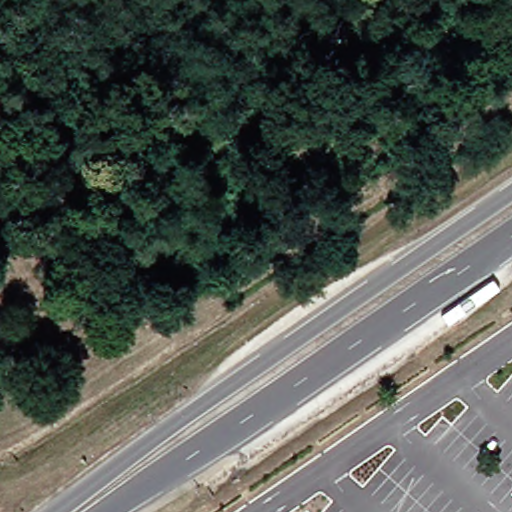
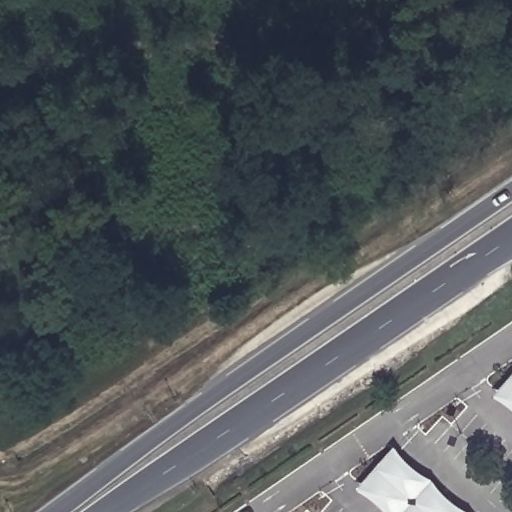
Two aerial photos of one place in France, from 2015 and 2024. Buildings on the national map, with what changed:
new [(497,392),(512,376),(512,406),(497,392)]
new [(398,448),(470,512),(391,512),(362,485),(398,448)]

